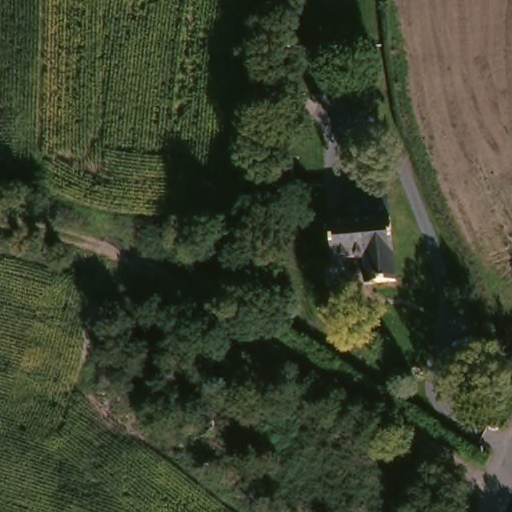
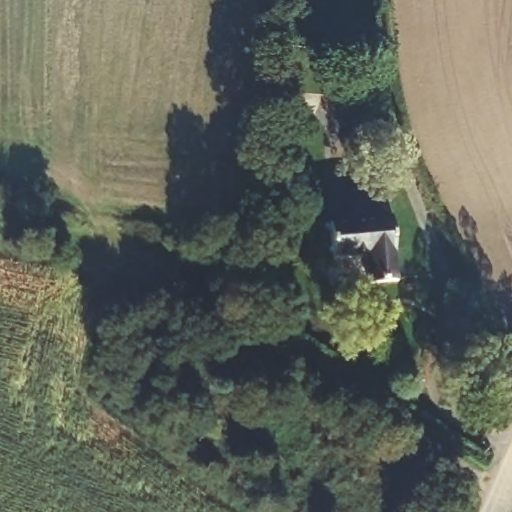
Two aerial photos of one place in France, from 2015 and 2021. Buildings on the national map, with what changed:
unchanged [(403,217),(404,280),(373,279),(373,253),(340,251),(341,215),(403,217)]

